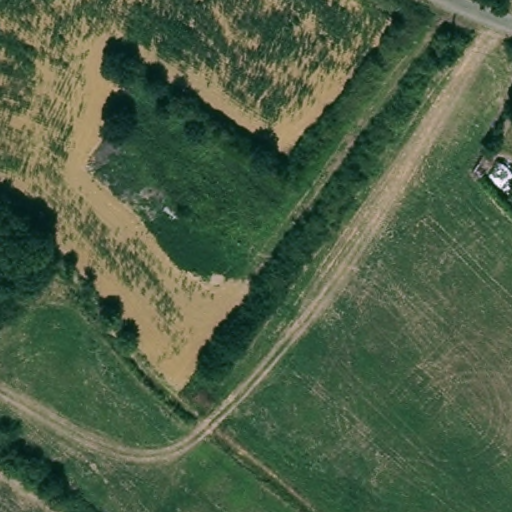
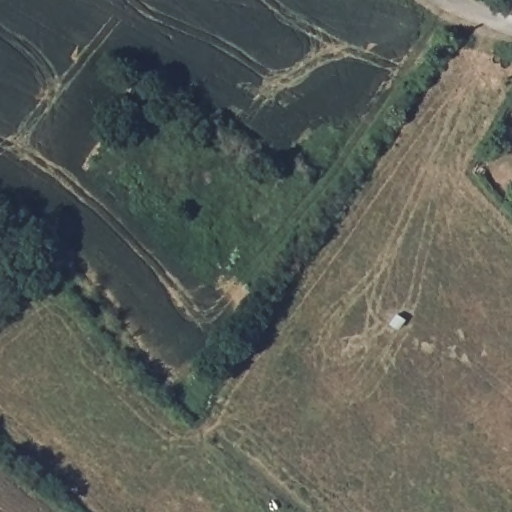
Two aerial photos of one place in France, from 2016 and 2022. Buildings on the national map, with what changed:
[]

